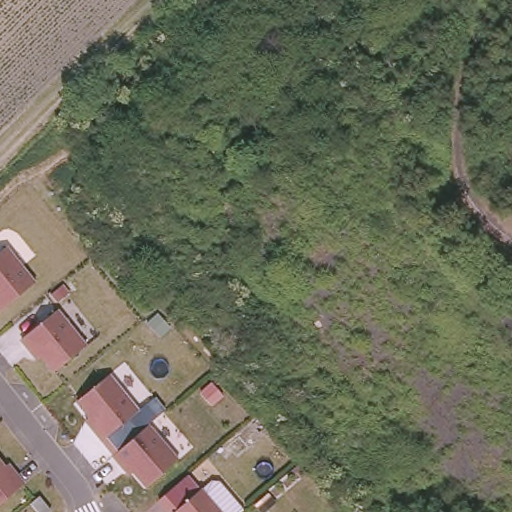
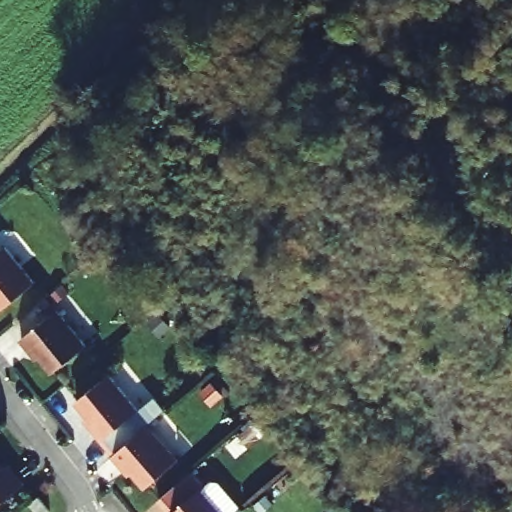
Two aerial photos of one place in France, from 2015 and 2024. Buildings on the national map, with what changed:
unchanged [(10,246),(40,281),(0,314),(0,255),(10,246)]
unchanged [(58,312),(87,348),(55,374),(36,351),(33,354),(23,342),(58,312)]
unchanged [(109,378),(138,412),(138,413),(103,443),(100,439),(93,430),(96,427),(78,403),(109,378)]
unchanged [(134,441),(149,428),(178,463),(148,490),(128,467),(124,470),(114,458),(134,441)]
unchanged [(10,478),(14,475),(24,487),(0,507),(0,467),(10,478)]
unchanged [(215,512),(178,512),(199,493),(215,512)]
unchanged [(49,512),(35,512),(30,506),(30,505),(38,499),(49,512)]

